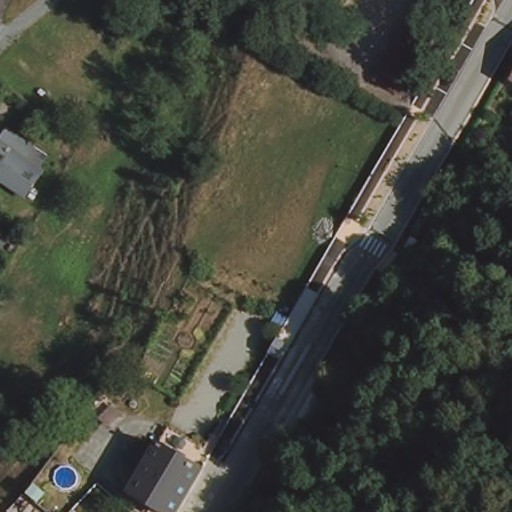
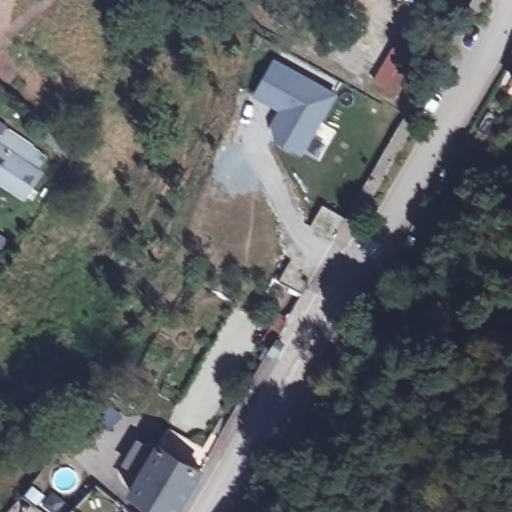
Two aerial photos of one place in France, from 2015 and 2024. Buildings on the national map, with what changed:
unchanged [(425,0),(458,0),(402,99),(377,85),(425,0)]
new [(304,154),(274,139),(272,124),(279,109),(254,95),(276,56),(339,94),(304,154)]
unchanged [(27,158),(44,169),(22,200),(0,185),(0,140),(2,141),(7,133),(10,129),(35,146),(32,150),(27,158)]
unchanged [(435,227),(434,230),(426,241),(410,232),(419,217),(435,227)]
unchanged [(312,397),(322,403),(305,430),(295,424),(312,397)]
unchanged [(142,450),(159,460),(165,449),(207,475),(185,512),(156,512),(135,499),(147,480),(130,469),(142,450)]
unchanged [(18,512),(15,510),(39,497),(47,503),(38,512),(18,512)]

